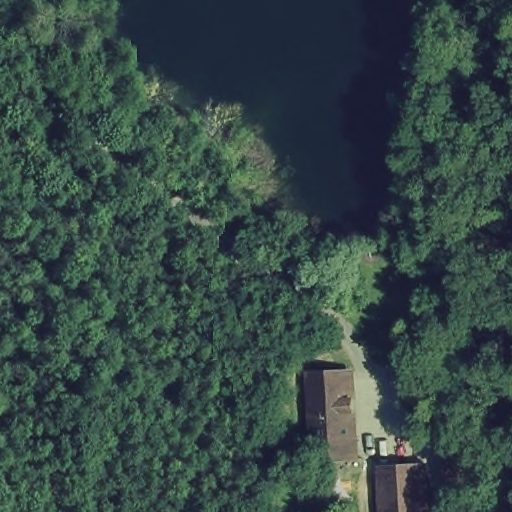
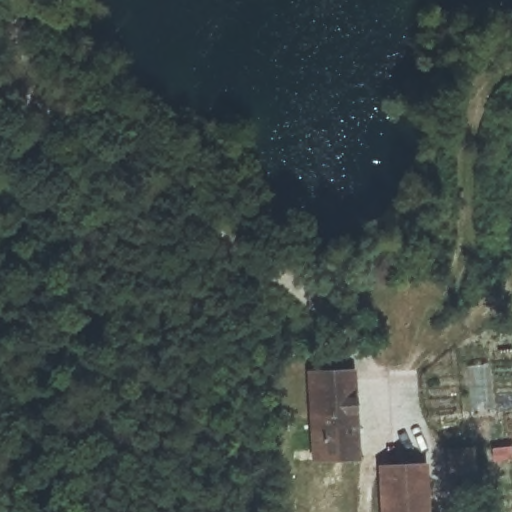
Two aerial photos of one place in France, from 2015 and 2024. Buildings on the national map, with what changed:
unchanged [(308,462),(305,367),(349,366),(351,461),(308,462)]
unchanged [(377,472),(429,468),(432,512),(380,512),(377,472)]

